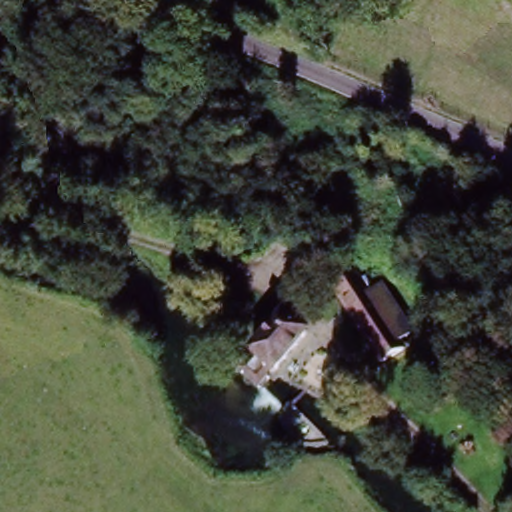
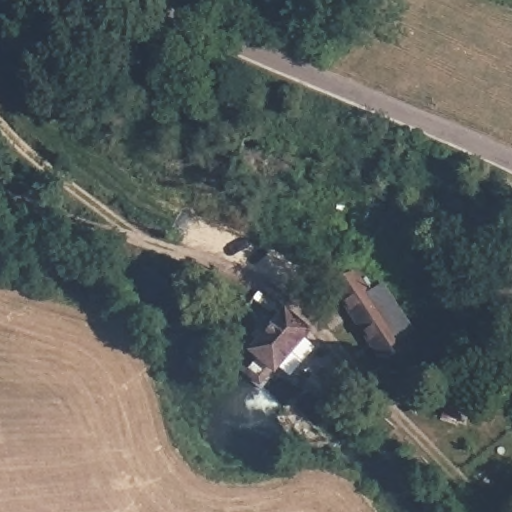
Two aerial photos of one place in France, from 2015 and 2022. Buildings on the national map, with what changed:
unchanged [(384,368),(333,291),(357,275),(372,299),(380,295),(385,291),(412,332),(398,341),(406,353),(384,368)]
unchanged [(292,315),(305,329),(312,335),(277,372),(255,352),(292,315)]

